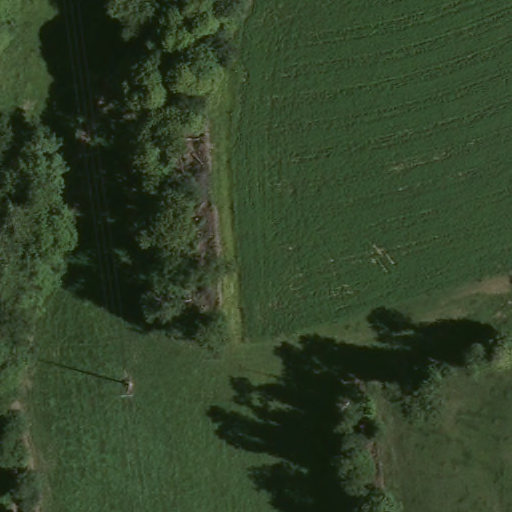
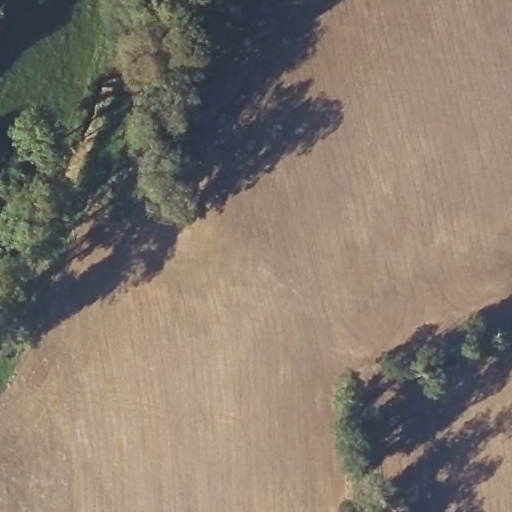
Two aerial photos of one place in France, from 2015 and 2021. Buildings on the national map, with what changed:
[]

